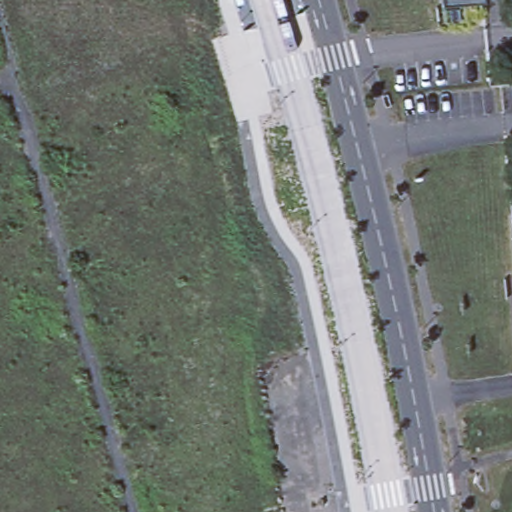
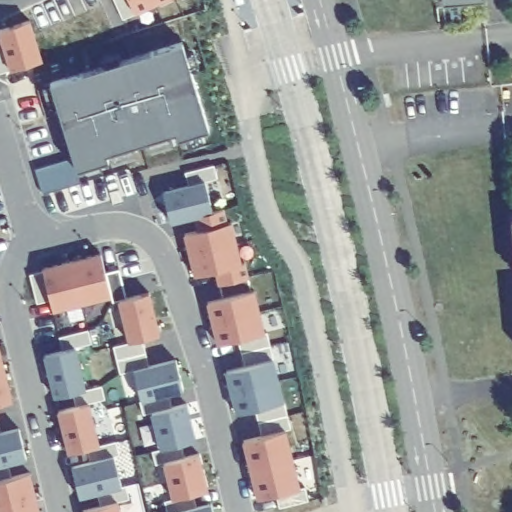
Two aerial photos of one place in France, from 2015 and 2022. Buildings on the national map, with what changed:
new [(113,0),(177,0),(123,23),(113,0)]
new [(236,4),(235,0),(244,0),(244,2),(236,4)]
new [(442,0),(470,0),(443,3),(442,0)]
new [(1,44),(0,40),(0,34),(31,25),(42,65),(0,75),(0,45),(1,44)]
new [(183,42),(209,130),(177,139),(175,133),(106,153),(108,160),(77,170),(50,82),(183,42)]
new [(215,205),(228,201),(231,219),(236,217),(243,255),(247,253),(254,282),(256,282),(271,337),(214,351),(201,297),(216,293),(213,278),(192,282),(178,221),(166,224),(157,188),(209,174),(215,205)]
new [(114,293),(152,284),(166,337),(126,348),(113,299),(48,315),(36,263),(103,247),(114,293)]
new [(18,398),(11,400),(0,403),(0,335),(1,335),(18,398)]
new [(86,388),(53,397),(43,352),(74,345),(86,388)]
new [(284,401),(236,414),(221,364),(276,352),(284,401)]
new [(184,390),(141,402),(131,369),(176,358),(184,390)]
new [(99,445),(68,453),(57,410),(88,401),(99,445)]
new [(196,439),(159,449),(150,411),(188,401),(196,439)]
new [(28,457),(0,464),(0,431),(18,426),(28,457)]
new [(286,429),(301,488),(257,500),(242,441),(286,429)]
new [(210,489),(172,500),(163,460),(199,452),(210,489)]
new [(123,487),(78,497),(70,465),(114,454),(123,487)]
new [(41,512),(0,512),(0,477),(30,470),(41,512)]
new [(122,512),(82,512),(81,508),(119,500),(122,512)]
new [(214,512),(175,512),(211,502),(214,512)]

